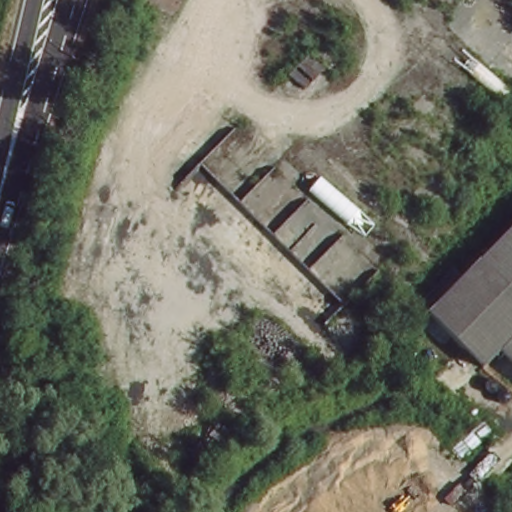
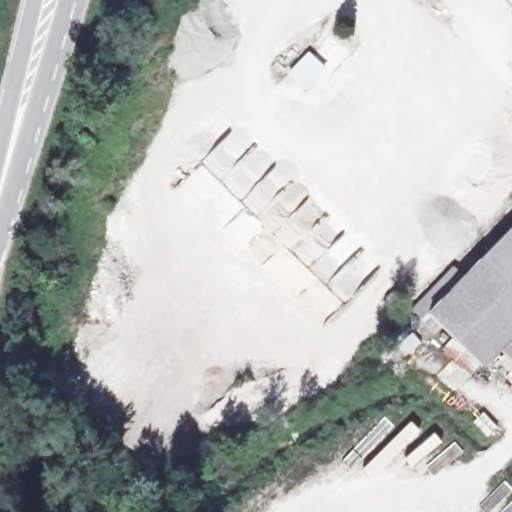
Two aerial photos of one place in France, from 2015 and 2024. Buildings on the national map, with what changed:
unchanged [(435,290),(453,271),(465,282),(512,233),(512,364),(500,352),(483,367),(430,317),(425,322),(415,312),(435,290)]

